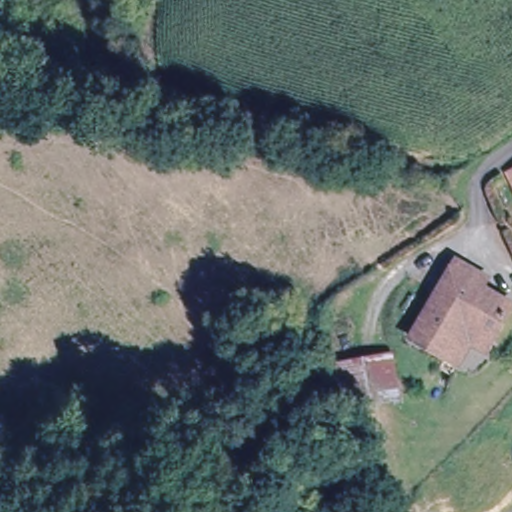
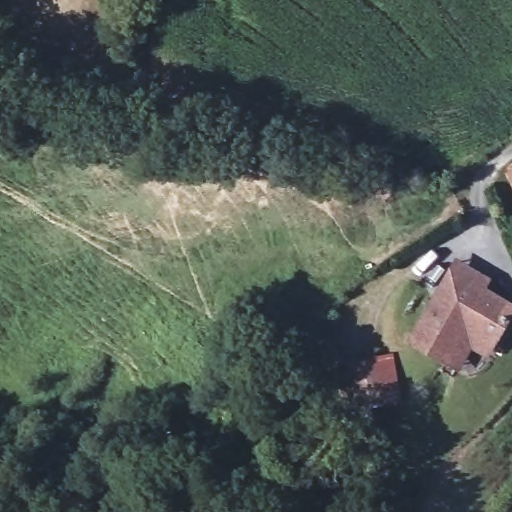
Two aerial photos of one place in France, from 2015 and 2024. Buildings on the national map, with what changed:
unchanged [(512,169),(512,184),(507,173),(512,169)]
unchanged [(468,350),(456,367),(445,361),(413,341),(452,275),(445,270),(451,263),(479,278),(475,287),(510,310),(485,347),(479,356),(468,350)]
unchanged [(343,340),(347,356),(384,347),(389,395),(365,400),(372,442),(349,447),(328,340),(343,340)]

